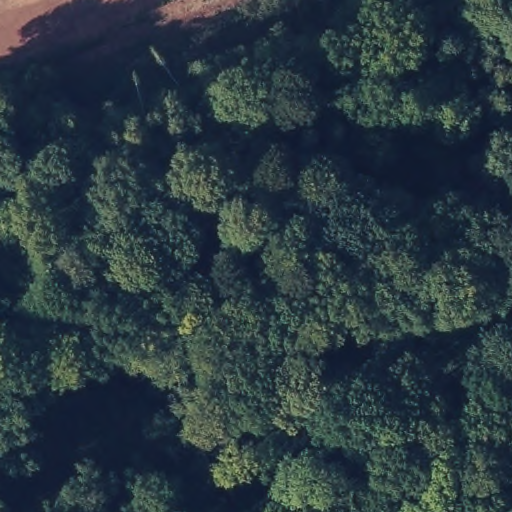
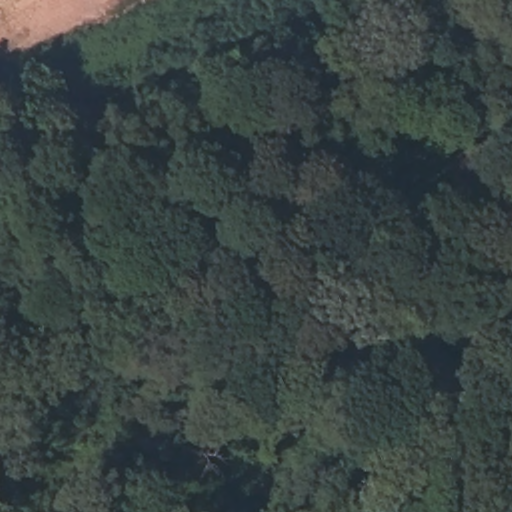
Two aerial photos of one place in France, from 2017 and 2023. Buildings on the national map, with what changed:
unchanged [(466,143),(489,181),(427,213),(404,179),(466,143)]

